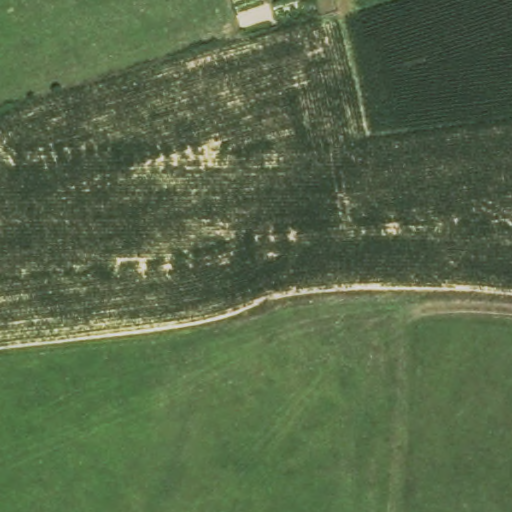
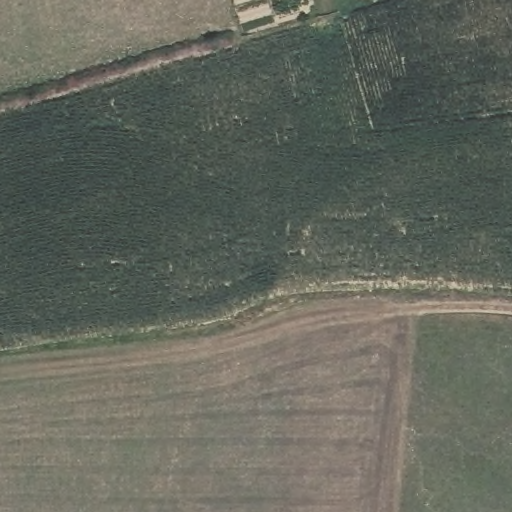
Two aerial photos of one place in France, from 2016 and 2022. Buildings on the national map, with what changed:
[]

